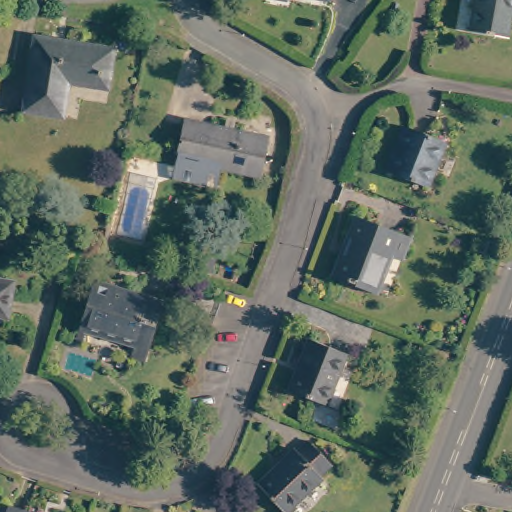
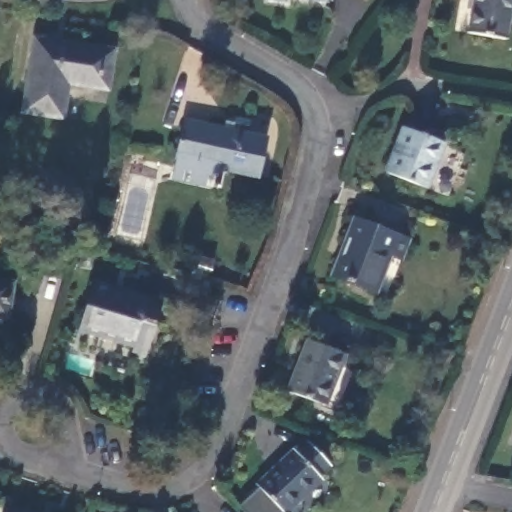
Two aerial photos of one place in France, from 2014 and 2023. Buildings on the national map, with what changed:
unchanged [(494,0),(512,0),(512,31),(489,27),(494,0)]
unchanged [(114,45),(107,87),(68,80),(64,114),(22,108),(35,32),(114,45)]
unchanged [(194,115),(277,133),(267,174),(213,161),(210,174),(183,166),(186,155),(194,115)]
unchanged [(426,189),(385,173),(403,126),(444,143),(426,189)]
unchanged [(408,239),(400,260),(389,255),(374,292),(332,276),(355,219),(408,239)]
unchanged [(21,314),(0,310),(0,273),(27,277),(21,314)]
unchanged [(158,363),(150,361),(144,359),(148,346),(100,331),(96,345),(89,343),(108,280),(169,299),(178,301),(158,363)]
unchanged [(350,350),(330,401),(292,386),(313,335),(350,350)]
unchanged [(293,512),(267,484),(304,450),(307,452),(318,442),(340,465),(329,475),(332,480),(298,512),(293,512)]
unchanged [(11,512),(13,505),(33,512),(11,512)]

